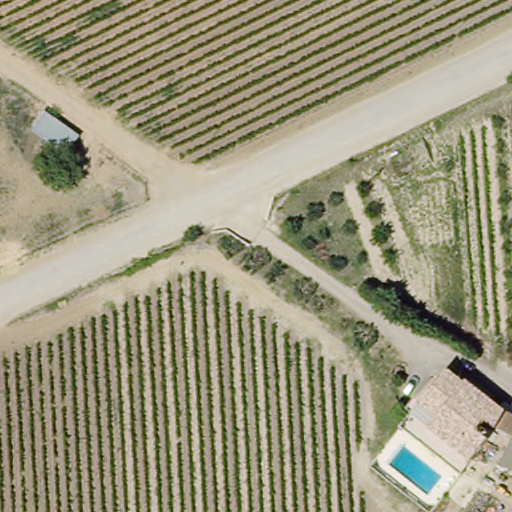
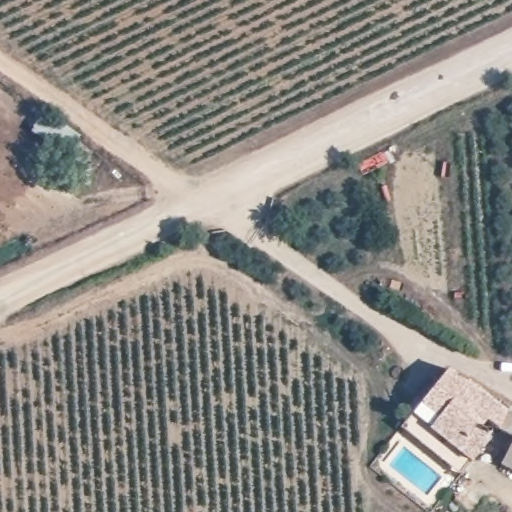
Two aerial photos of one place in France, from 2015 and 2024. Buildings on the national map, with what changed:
unchanged [(484,433),(491,438),(466,475),(405,426),(454,368),(471,376),(512,406),(502,421),(490,413),(484,424),(484,433)]
unchanged [(501,459),(512,440),(512,466),(501,459)]

